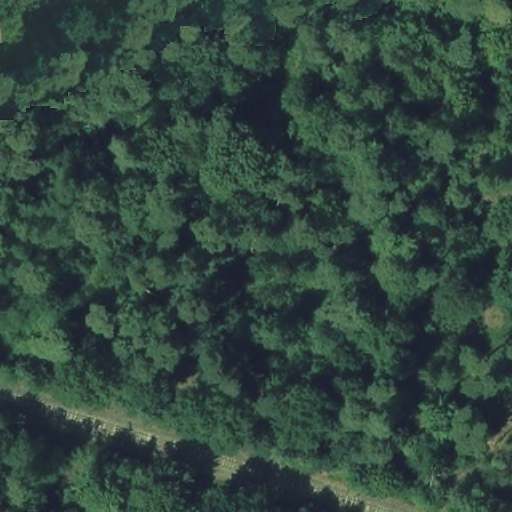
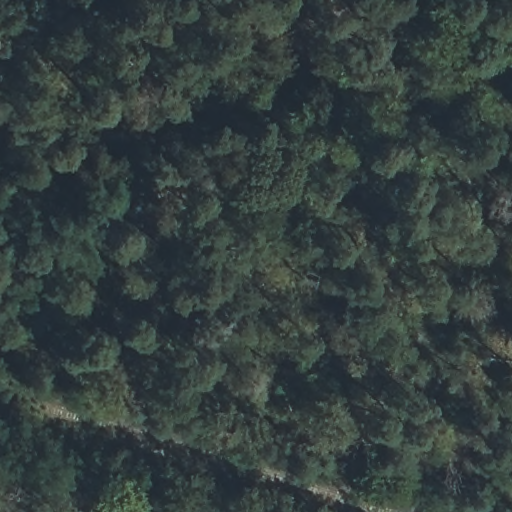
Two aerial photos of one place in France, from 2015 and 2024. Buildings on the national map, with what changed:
[]

